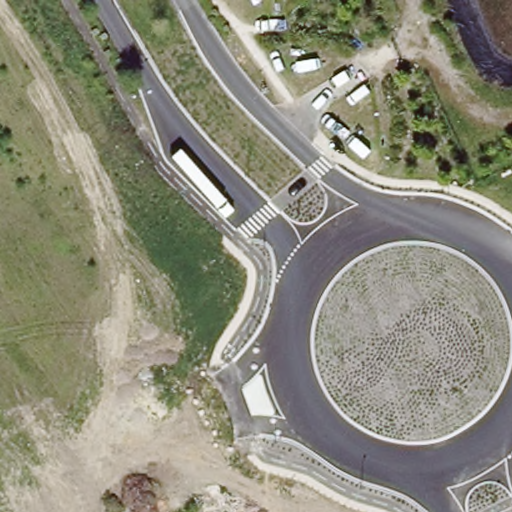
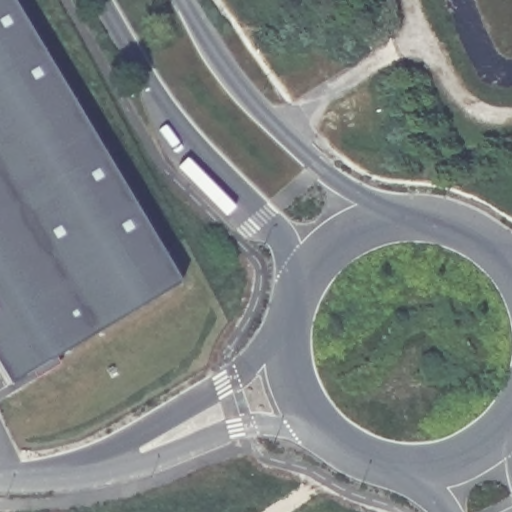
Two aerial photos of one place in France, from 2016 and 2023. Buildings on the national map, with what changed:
new [(0,364),(0,0),(14,0),(184,282),(12,385),(0,364)]

